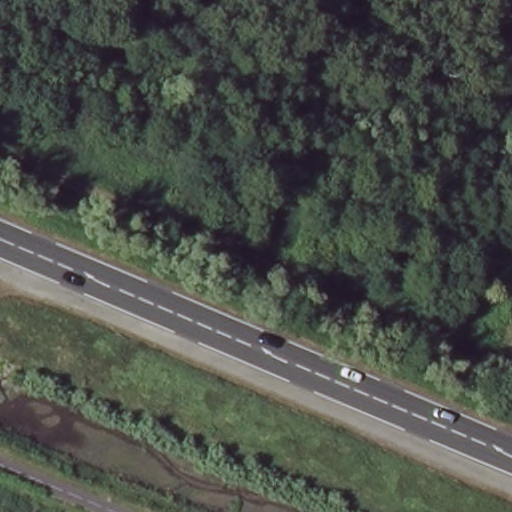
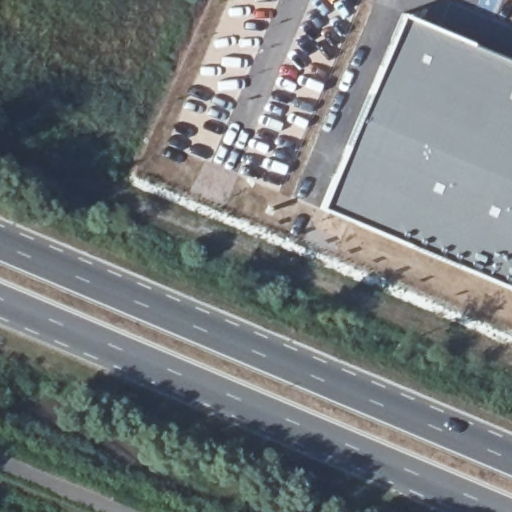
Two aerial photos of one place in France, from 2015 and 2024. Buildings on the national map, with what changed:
new [(512,59),(512,289),(318,209),(400,11),(512,59)]

